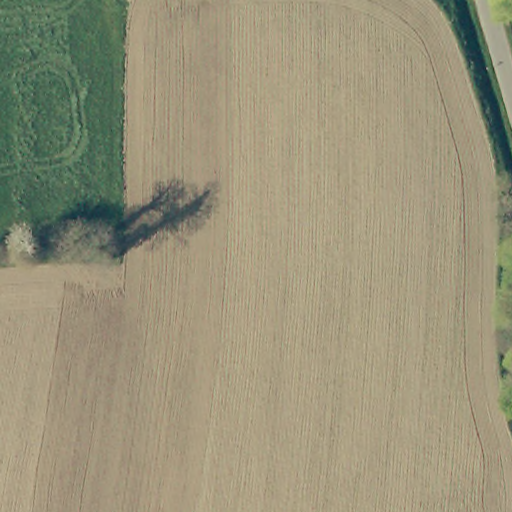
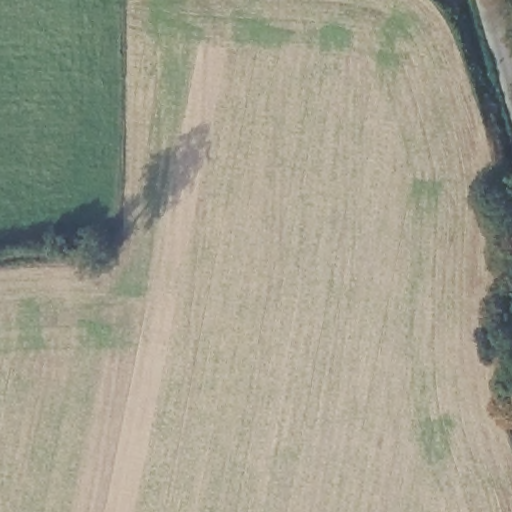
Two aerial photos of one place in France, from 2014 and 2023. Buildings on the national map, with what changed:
[]

